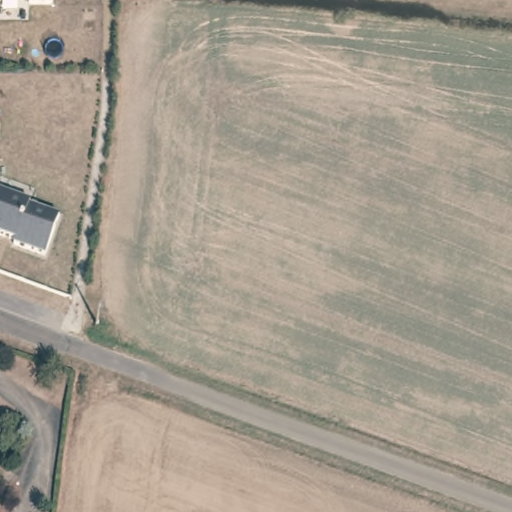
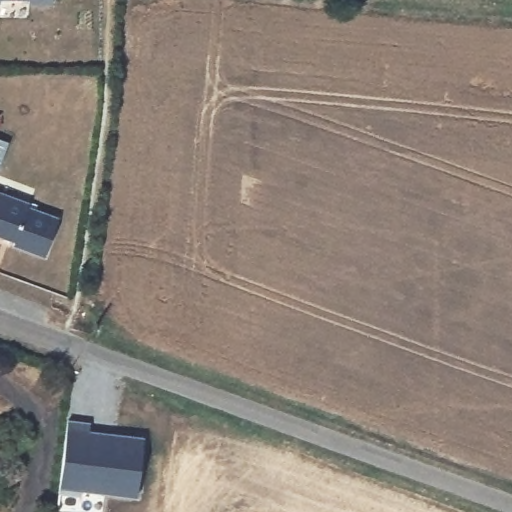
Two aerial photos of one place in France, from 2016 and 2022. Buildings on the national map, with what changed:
unchanged [(25,2),(25,0),(50,0),(50,2),(25,2)]
unchanged [(15,237),(0,232),(0,188),(30,199),(29,203),(59,214),(45,253),(14,241),(15,237)]
new [(137,496),(84,490),(83,496),(59,493),(68,418),(90,421),(89,431),(144,438),(137,496)]
unchanged [(0,439),(3,439),(0,449),(0,439)]

